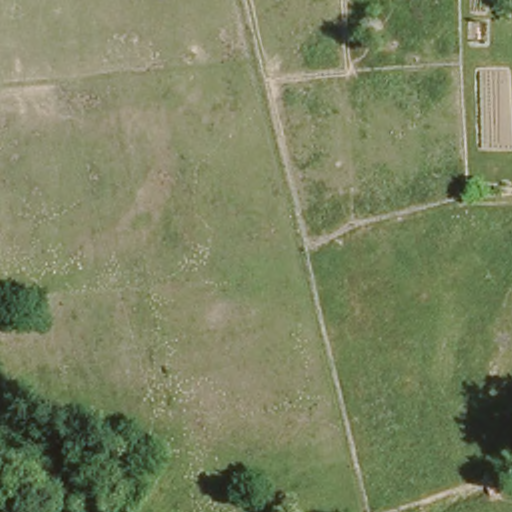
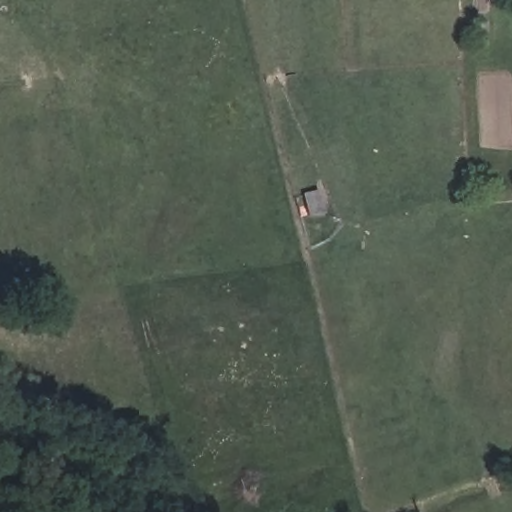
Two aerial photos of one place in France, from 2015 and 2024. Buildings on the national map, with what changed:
[]

